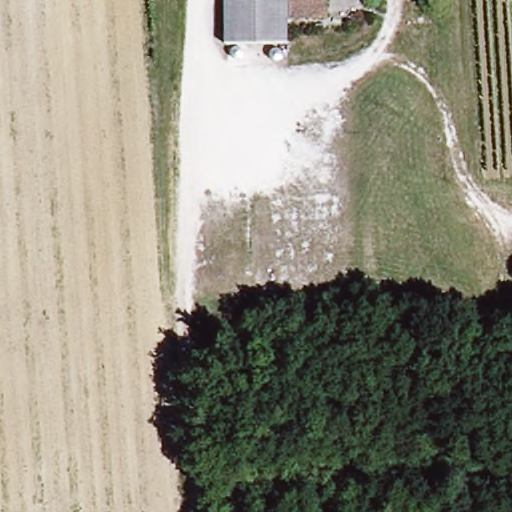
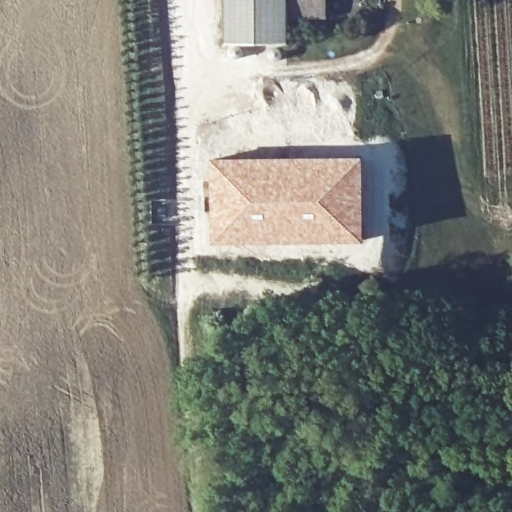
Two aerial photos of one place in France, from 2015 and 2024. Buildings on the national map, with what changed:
unchanged [(277,41),(274,13),(220,14),(219,0),(281,0),(282,19),(285,40),(277,41)]
unchanged [(281,0),(328,0),(329,16),(282,19),(281,0)]
unchanged [(277,41),(221,45),(220,14),(274,13),(277,41)]
new [(297,155),(365,155),(365,241),(212,244),(210,158),(297,155)]

